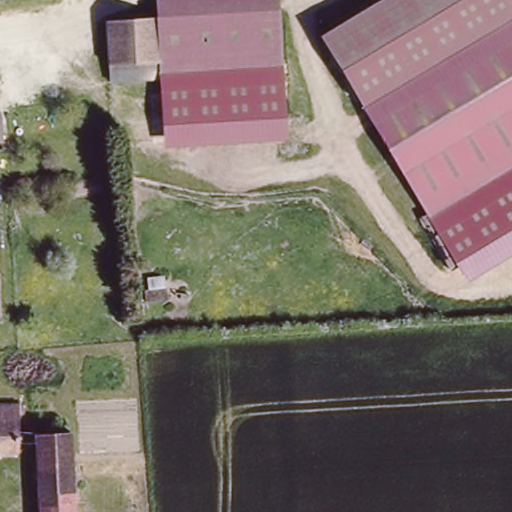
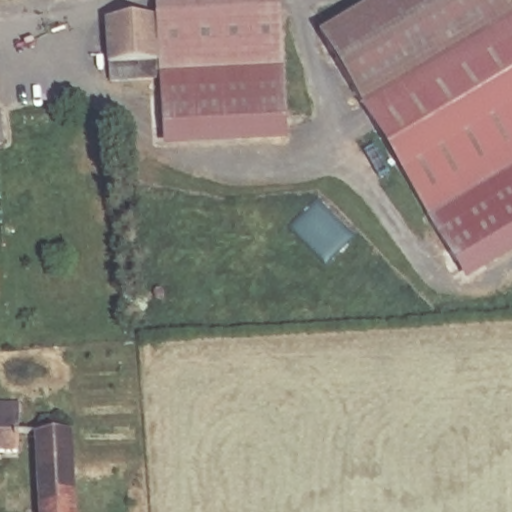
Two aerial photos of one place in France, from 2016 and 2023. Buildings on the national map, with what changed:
unchanged [(27,0),(0,2),(0,0),(27,0)]
unchanged [(157,27),(155,8),(244,1),(250,0),(280,0),(285,65),(252,67),(161,76),(157,27)]
unchanged [(379,0),(510,0),(512,3),(512,44),(375,126),(318,36),(379,0)]
unchanged [(162,85),(113,89),(108,31),(157,27),(161,76),(162,85)]
unchanged [(375,126),(512,44),(512,171),(433,219),(375,126)]
unchanged [(161,76),(252,67),(285,65),(287,140),(166,147),(162,85),(161,76)]
unchanged [(1,105),(5,146),(0,147),(0,105),(1,105)]
unchanged [(433,219),(512,171),(512,255),(468,282),(433,219)]
unchanged [(16,403),(17,456),(0,456),(0,404),(16,403)]
unchanged [(73,430),(77,512),(40,512),(36,431),(73,430)]

